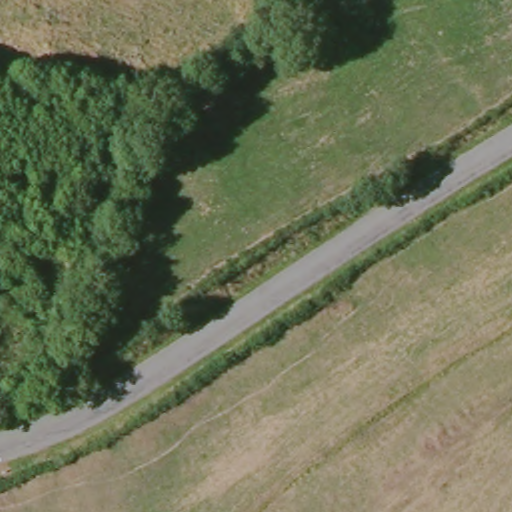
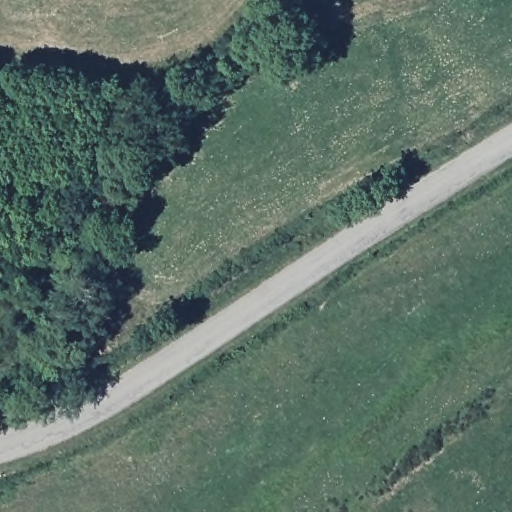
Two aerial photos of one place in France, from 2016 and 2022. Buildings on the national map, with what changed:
[]

